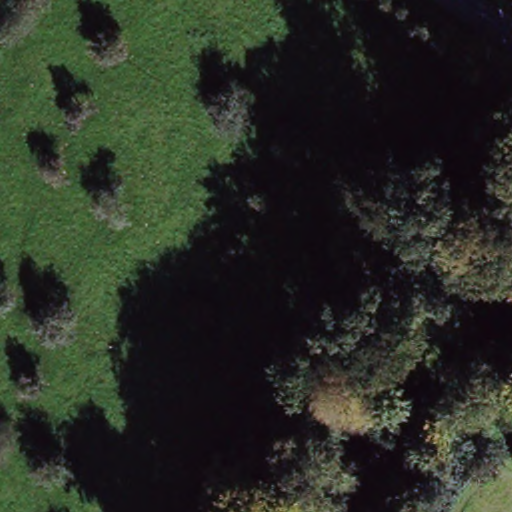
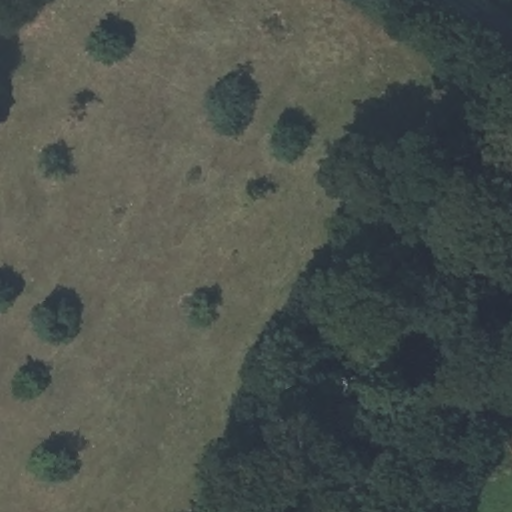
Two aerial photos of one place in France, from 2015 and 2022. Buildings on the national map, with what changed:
unchanged [(500,441),(512,434),(512,457),(500,441)]

